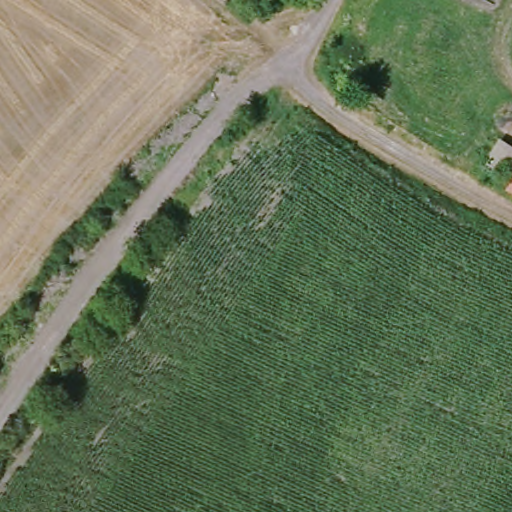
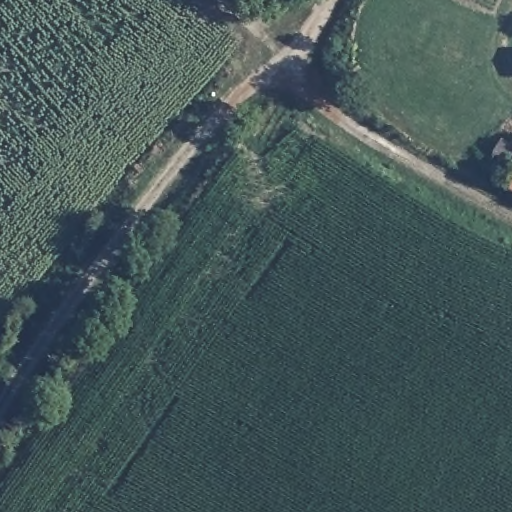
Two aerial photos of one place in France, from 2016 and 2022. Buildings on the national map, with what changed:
unchanged [(498,143),(512,148),(512,182),(507,179),(480,169),(498,143)]

